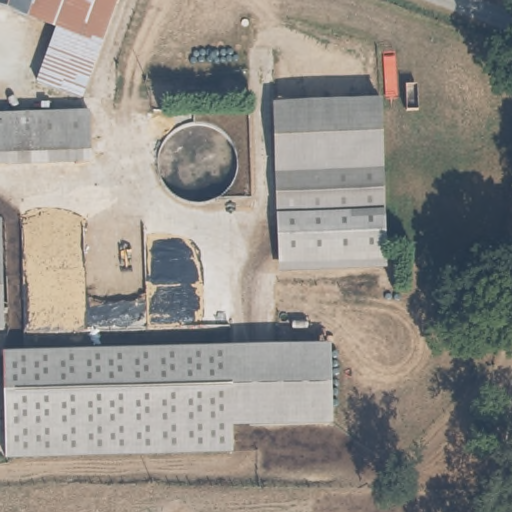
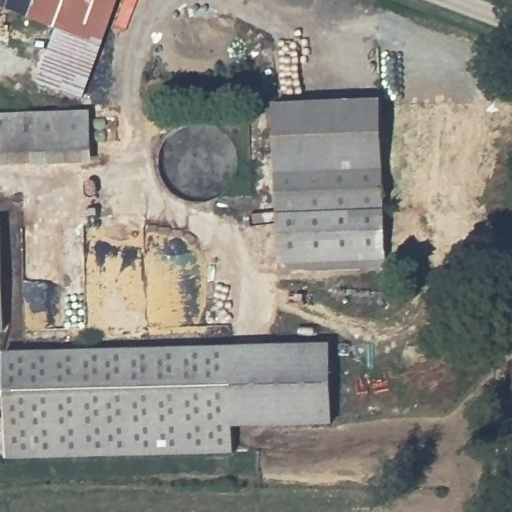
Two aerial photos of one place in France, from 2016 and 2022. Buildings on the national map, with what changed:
unchanged [(32,0),(27,16),(0,8),(0,0),(32,0)]
unchanged [(39,85),(56,26),(27,16),(32,0),(117,0),(84,99),(39,85)]
unchanged [(378,100),(382,165),(280,170),(275,105),(378,100)]
unchanged [(93,161),(0,162),(0,110),(92,110),(93,161)]
unchanged [(382,165),(385,208),(282,214),(280,170),(382,165)]
unchanged [(386,248),(285,254),(282,214),(385,208),(386,248)]
unchanged [(5,224),(9,329),(0,329),(0,223),(5,224)]
unchanged [(327,419),(227,424),(228,451),(7,458),(3,360),(324,343),(327,419)]

